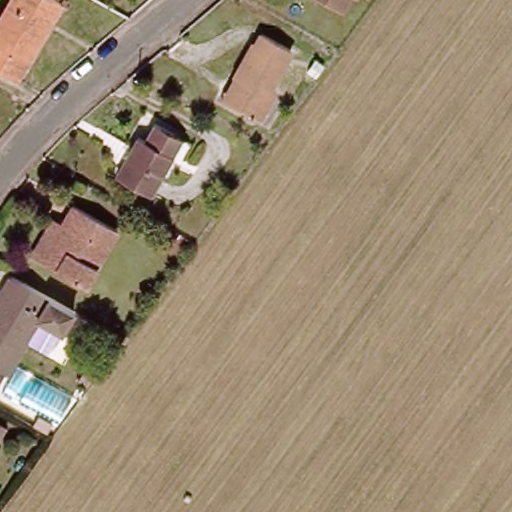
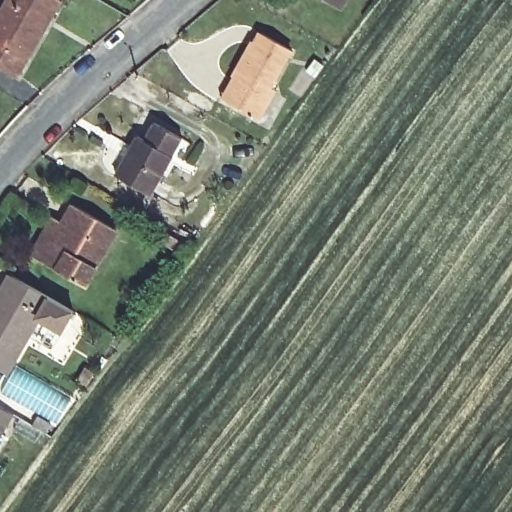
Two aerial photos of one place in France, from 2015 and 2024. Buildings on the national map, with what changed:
unchanged [(0,8),(5,0),(49,0),(64,8),(22,78),(0,66),(0,8)]
unchanged [(338,5),(331,0),(341,0),(338,5)]
unchanged [(242,66),(257,42),(259,44),(267,31),(296,49),(279,82),(285,86),(263,118),(232,100),(224,95),(242,66)]
unchanged [(112,178),(136,134),(141,136),(152,118),(184,136),(148,199),(112,178)]
unchanged [(46,261),(66,225),(60,221),(75,198),(121,224),(91,284),(46,261)]
unchanged [(59,332),(36,319),(10,369),(0,365),(0,294),(11,272),(71,307),(59,332)]
unchanged [(0,432),(0,418),(6,422),(0,432)]

